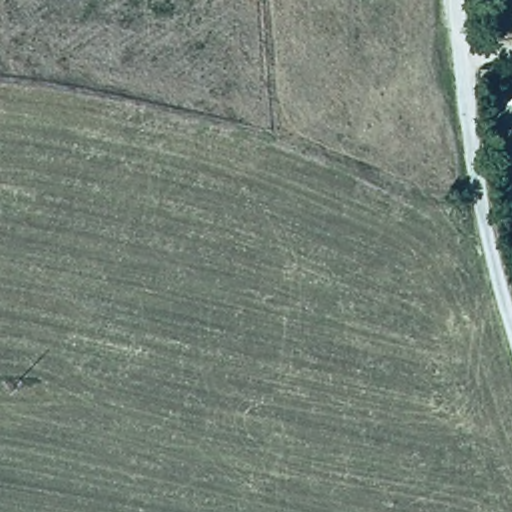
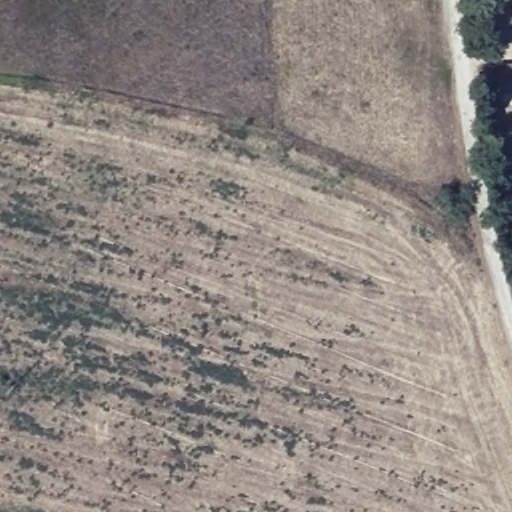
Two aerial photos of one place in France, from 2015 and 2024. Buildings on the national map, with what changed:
unchanged [(489,101),(512,99),(512,163),(497,165),(489,101)]

